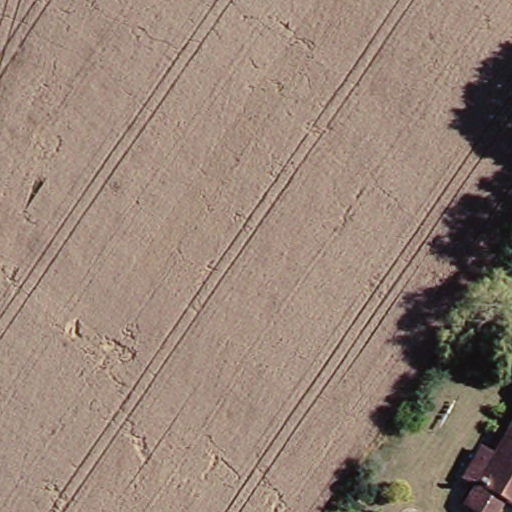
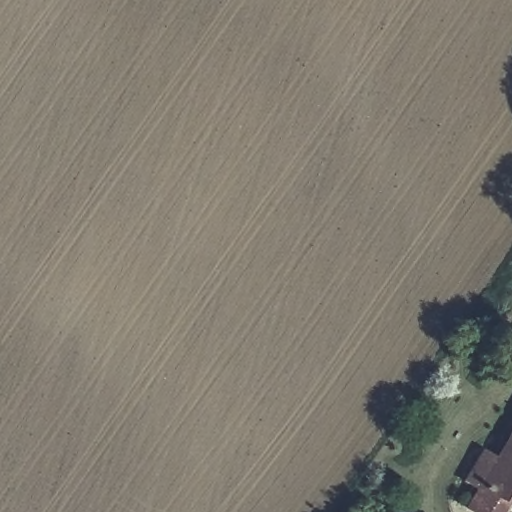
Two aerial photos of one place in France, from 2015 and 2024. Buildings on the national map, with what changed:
unchanged [(476,507),(512,438),(512,500),(506,512),(487,512),(476,507)]

